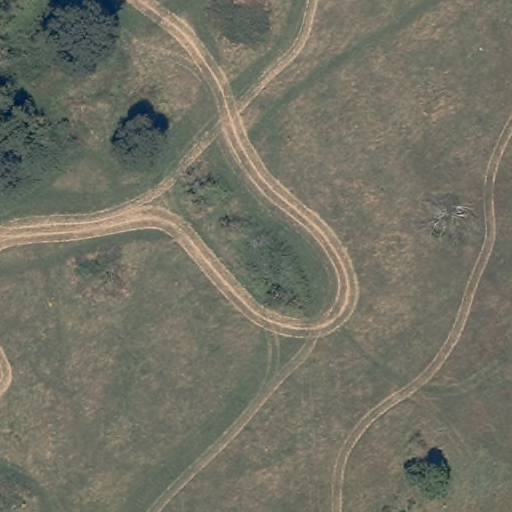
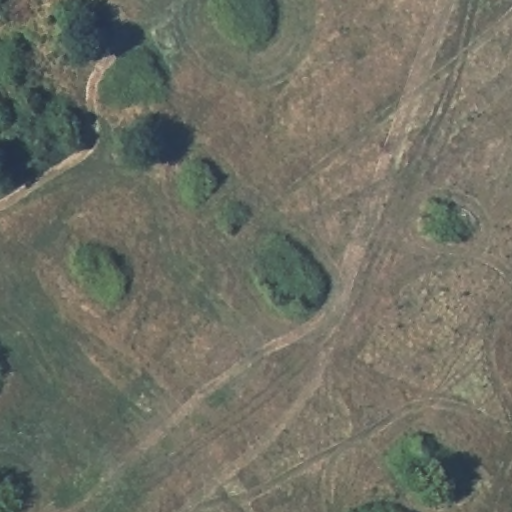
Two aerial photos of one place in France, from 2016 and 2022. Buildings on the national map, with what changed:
[]

